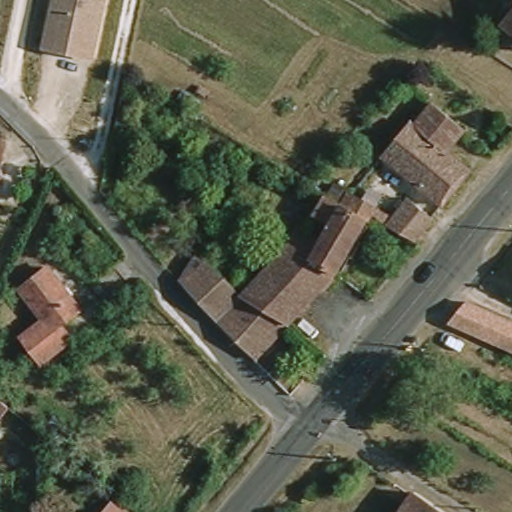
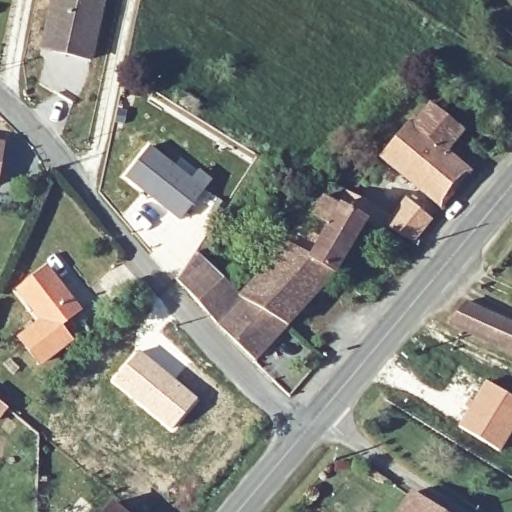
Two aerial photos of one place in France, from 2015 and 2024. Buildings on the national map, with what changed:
unchanged [(41,51),(52,0),(108,0),(95,61),(41,51)]
unchanged [(502,25),(512,13),(512,33),(502,25)]
unchanged [(419,119),(431,103),(462,128),(444,150),(469,171),(440,206),(380,157),(414,115),(419,119)]
new [(152,145),(191,176),(199,168),(213,180),(181,220),(125,176),(152,145)]
unchanged [(0,181),(0,146),(5,147),(0,181)]
unchanged [(340,185),(396,218),(412,200),(435,217),(417,240),(392,226),(389,231),(370,220),(333,196),(340,185)]
unchanged [(251,292),(245,285),(253,277),(259,282),(279,259),(292,245),(301,249),(310,232),(330,195),(333,196),(370,220),(340,268),(290,325),(246,296),(251,292)]
unchanged [(201,249),(226,275),(203,302),(181,280),(201,249)]
unchanged [(47,269),(78,310),(58,325),(70,340),(37,363),(20,338),(44,320),(21,290),(47,269)]
unchanged [(203,302),(226,275),(231,281),(246,296),(290,325),(257,360),(203,302)]
unchanged [(451,327),(468,307),(512,327),(512,355),(451,327)]
new [(139,349),(198,398),(170,432),(110,381),(139,349)]
new [(485,379),(512,396),(512,432),(500,452),(456,425),(485,379)]
new [(0,418),(0,405),(6,410),(0,418)]
unchanged [(412,493),(440,512),(400,512),(412,493)]
unchanged [(114,503),(125,512),(106,512),(114,503)]

